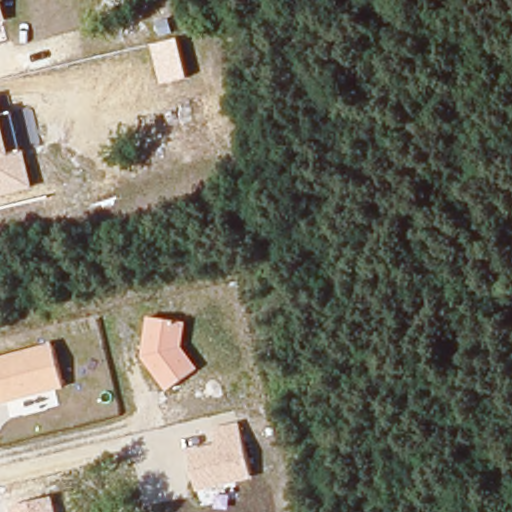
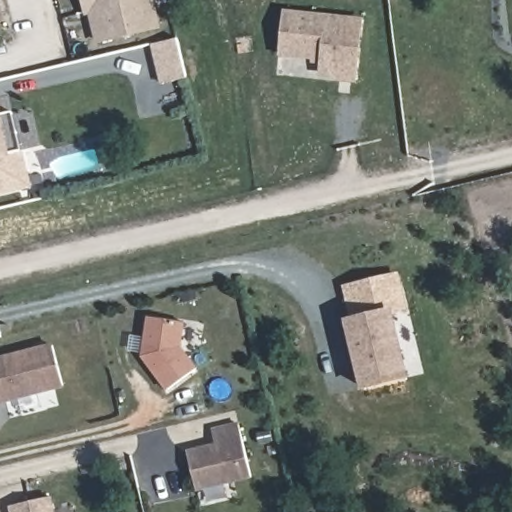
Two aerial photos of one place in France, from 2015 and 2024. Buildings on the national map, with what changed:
unchanged [(0,0),(1,0),(6,23),(0,24),(0,0)]
new [(161,28),(100,42),(92,11),(86,12),(84,0),(154,0),(161,28)]
new [(333,81),(334,77),(320,75),(321,64),(312,64),(312,60),(278,57),(284,10),(364,18),(358,82),(333,81)]
new [(188,78),(161,83),(152,44),(178,38),(188,78)]
unchanged [(0,107),(1,113),(13,112),(33,188),(0,196),(0,107)]
new [(399,275),(408,309),(394,312),(409,377),(366,387),(351,321),(357,319),(349,287),(399,275)]
unchanged [(168,391),(143,358),(149,316),(190,322),(185,348),(201,368),(168,391)]
unchanged [(0,405),(0,358),(55,344),(66,390),(0,405)]
unchanged [(253,480),(199,491),(191,448),(213,443),(211,432),(243,425),(253,480)]
unchanged [(11,512),(10,507),(55,497),(58,512),(11,512)]

